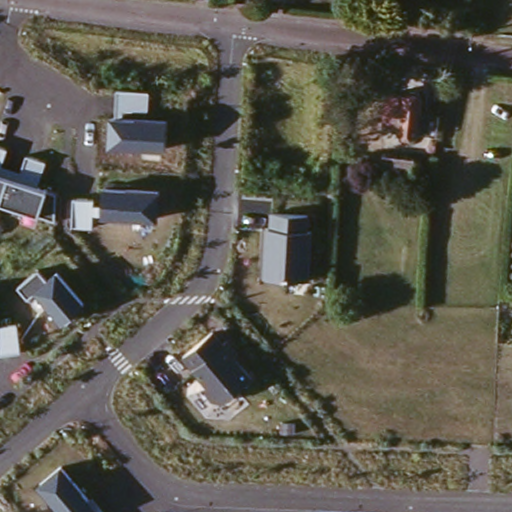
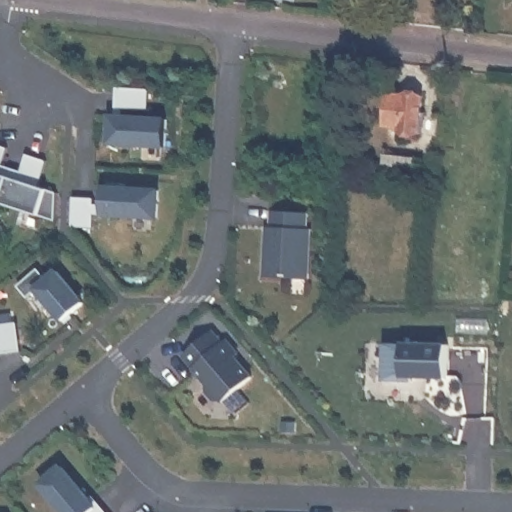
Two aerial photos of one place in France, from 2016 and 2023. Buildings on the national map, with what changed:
unchanged [(411,84),(411,80),(416,77),(423,79),(427,84),(422,121),(398,117),(399,114),(391,111),(395,81),(411,84)]
unchanged [(110,116),(118,116),(119,89),(150,89),(149,117),(170,118),(167,151),(109,145),(110,116)]
unchanged [(387,157),(390,142),(421,146),(419,161),(387,157)]
unchanged [(8,150),(4,165),(22,170),(27,156),(47,161),(39,187),(54,194),(54,220),(38,214),(0,202),(0,147),(8,150)]
unchanged [(74,199),(95,199),(95,204),(103,204),(105,186),(161,192),(160,219),(104,216),(94,217),(94,229),(72,226),(74,199)]
unchanged [(265,227),(270,227),(270,211),(308,212),(308,230),(313,230),(310,280),(263,278),(265,227)]
unchanged [(39,270),(47,280),(58,271),(87,306),(64,325),(36,292),(28,299),(18,287),(39,270)]
unchanged [(18,320),(22,353),(0,354),(0,322),(18,320)]
unchanged [(251,377),(221,402),(211,400),(202,388),(206,385),(185,355),(213,330),(251,377)]
new [(448,346),(447,378),(405,378),(406,382),(384,383),(387,343),(448,346)]
unchanged [(95,497),(107,512),(61,512),(38,483),(61,465),(89,500),(95,497)]

